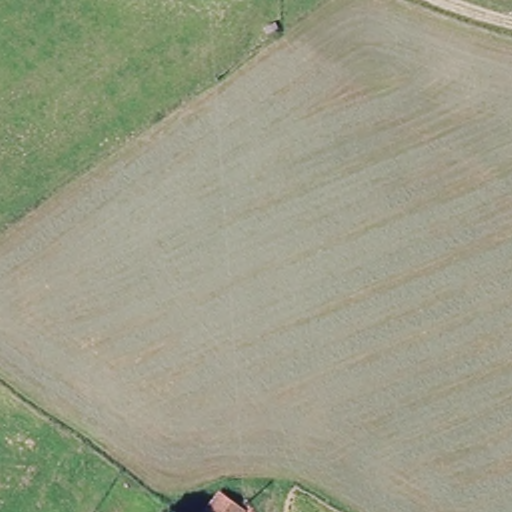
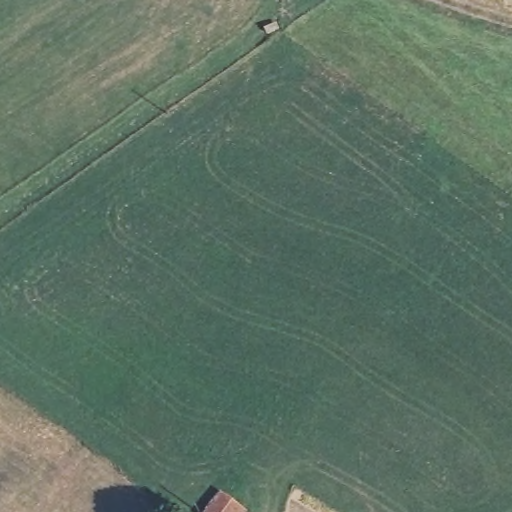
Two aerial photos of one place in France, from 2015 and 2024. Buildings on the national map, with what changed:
unchanged [(243,512),(213,512),(224,498),(243,512)]

